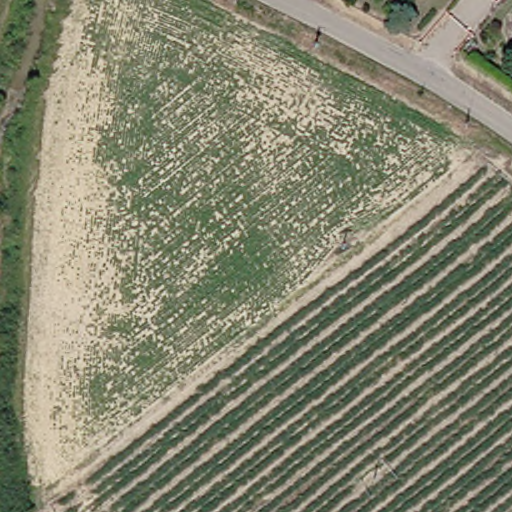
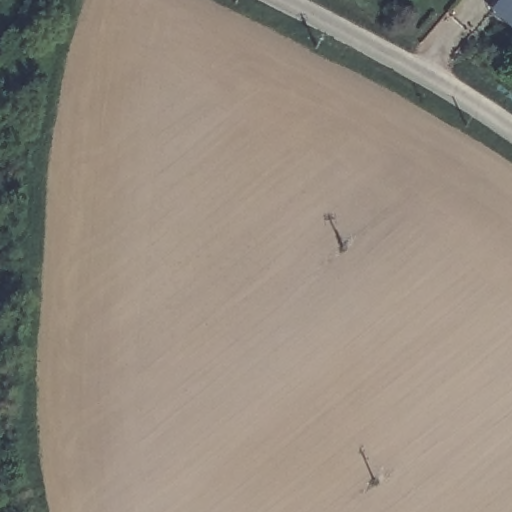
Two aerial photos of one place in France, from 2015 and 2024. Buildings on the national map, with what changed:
new [(491,10),(500,0),(512,0),(512,27),(491,10)]

